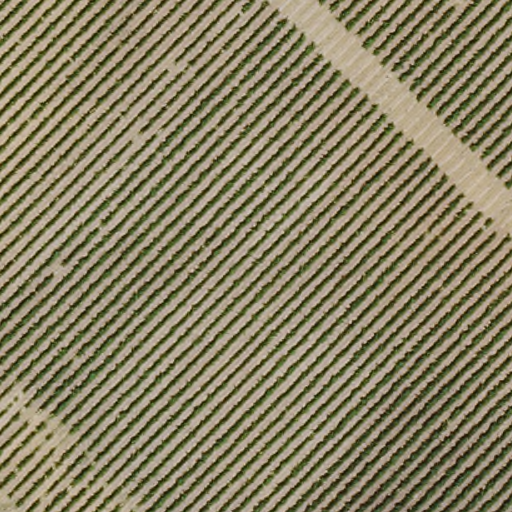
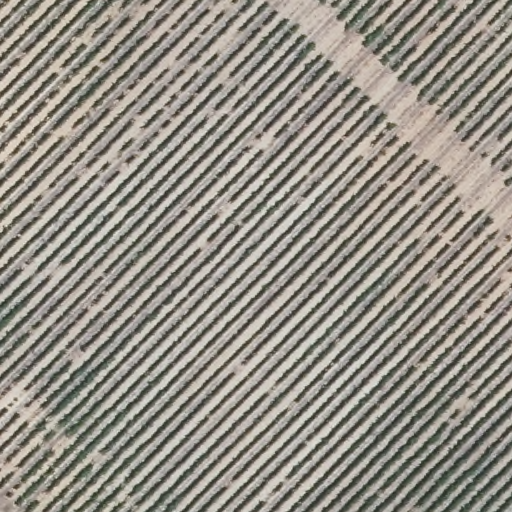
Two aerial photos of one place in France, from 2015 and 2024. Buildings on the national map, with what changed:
[]

